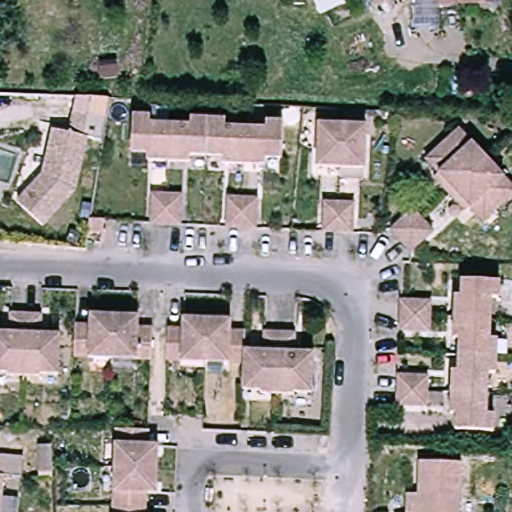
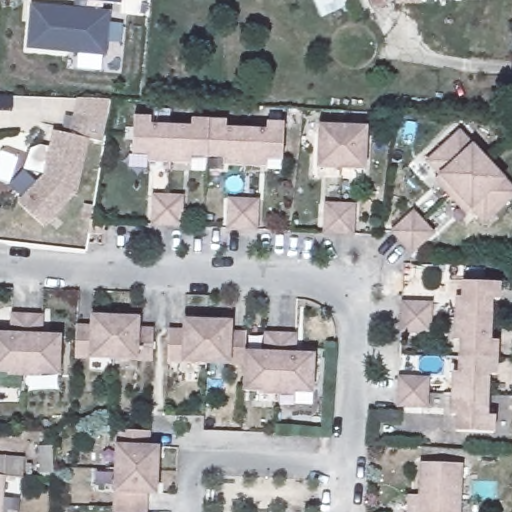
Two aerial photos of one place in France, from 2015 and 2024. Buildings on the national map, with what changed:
new [(75,1),(75,0),(122,0),(122,5),(104,3),(104,11),(112,12),(108,57),(27,51),(30,6),(75,9),(75,1)]
unchanged [(309,0),(340,0),(313,12),(309,0)]
unchanged [(373,11),(369,0),(391,0),(392,2),(373,11)]
demolished [(441,5),(440,37),(418,36),(419,3),(441,5)]
unchanged [(103,144),(88,140),(77,193),(45,229),(22,208),(46,179),(57,135),(72,138),(77,117),(109,117),(103,144)]
unchanged [(137,117),(154,119),(154,126),(174,127),(172,163),(152,162),(152,155),(135,155),(137,117)]
unchanged [(194,157),(194,165),(172,163),(174,127),(195,128),(195,121),(212,122),(210,158),(194,157)]
unchanged [(229,122),(229,130),(249,131),(247,167),(225,166),(226,159),(210,158),(212,122),(229,122)]
unchanged [(320,165),(322,122),(346,124),(344,167),(320,165)]
unchanged [(346,124),(370,126),(367,168),(344,167),(346,124)]
unchanged [(249,131),(269,132),(270,125),(287,126),(285,163),(269,162),(268,169),(247,167),(249,131)]
unchanged [(466,134),(494,166),(461,196),(445,178),(450,174),(437,159),(466,134)]
unchanged [(512,185),(512,208),(494,224),(481,209),(476,214),(461,196),(494,166),(512,185)]
unchanged [(184,227),(169,226),(154,225),(156,195),(171,196),(185,197),(184,227)]
unchanged [(260,231),(245,230),(230,229),(231,200),(246,201),(261,201),(260,231)]
unchanged [(360,237),(345,236),(330,235),(332,205),(347,206),(362,207),(360,237)]
unchanged [(417,258),(406,246),(397,235),(419,215),(428,226),(439,237),(417,258)]
unchanged [(109,218),(108,228),(88,227),(89,221),(89,217),(109,218)]
unchanged [(505,301),(498,300),(497,321),(461,318),(462,297),(468,297),(469,281),(506,283),(505,301)]
unchanged [(408,306),(438,307),(437,322),(436,337),(406,336),(407,321),(408,306)]
unchanged [(16,334),(17,314),(33,315),(29,377),(12,376),(12,373),(0,372),(0,333),(16,334)]
unchanged [(33,315),(48,316),(47,336),(66,337),(63,377),(45,376),(45,378),(29,377),(33,315)]
unchanged [(97,327),(97,317),(121,317),(119,361),(80,358),(82,326),(97,327)]
unchanged [(121,317),(144,319),(144,330),(158,331),(157,362),(119,361),(121,317)]
unchanged [(497,321),(496,341),(503,341),(502,358),(465,356),(466,341),(460,340),(461,318),(497,321)]
unchanged [(210,365),(172,362),(173,331),(188,332),(188,321),(212,322),(210,365)]
unchanged [(249,366),(210,365),(212,322),(236,323),(235,333),(251,335),(250,353),(249,366)]
unchanged [(249,366),(250,353),(269,355),(270,335),(285,336),(282,397),(265,396),(265,393),(248,392),(249,366)]
unchanged [(285,336),(300,337),(299,357),(318,357),(316,397),(299,396),(299,398),(282,397),(285,336)]
unchanged [(502,358),(501,376),(494,376),(493,395),(457,393),(458,372),(464,372),(465,356),(502,358)]
unchanged [(403,411),(403,396),(404,380),(434,382),(433,397),(432,412),(403,411)]
unchanged [(493,395),(492,416),(499,416),(498,433),(461,432),(462,415),(456,415),(457,393),(493,395)]
unchanged [(120,432),(153,433),(152,448),(162,448),(162,472),(119,470),(120,432)]
unchanged [(423,496),(425,462),(467,464),(465,512),(412,512),(412,496),(423,496)]
unchanged [(16,470),(14,512),(0,512),(0,470),(16,470)]
unchanged [(160,496),(150,496),(150,511),(117,510),(119,470),(162,472),(160,496)]
unchanged [(150,511),(150,512),(117,512),(117,510),(150,511)]

